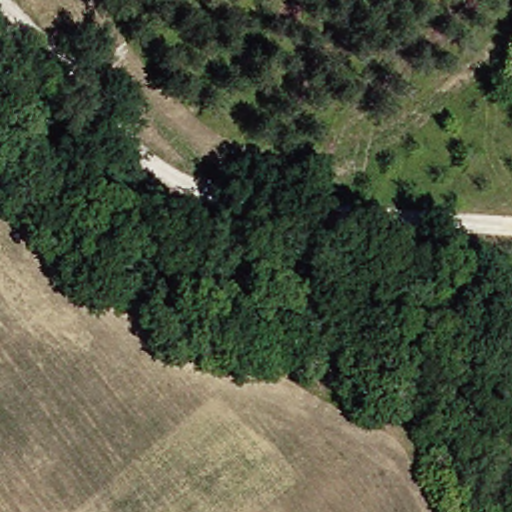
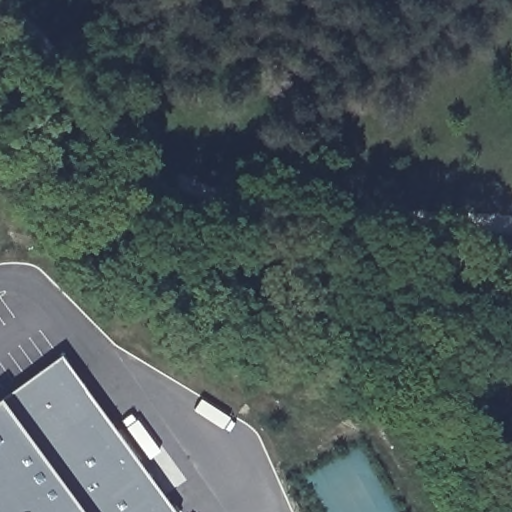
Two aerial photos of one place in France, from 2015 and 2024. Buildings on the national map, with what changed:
new [(58,358),(170,512),(0,512),(0,399),(58,358)]

